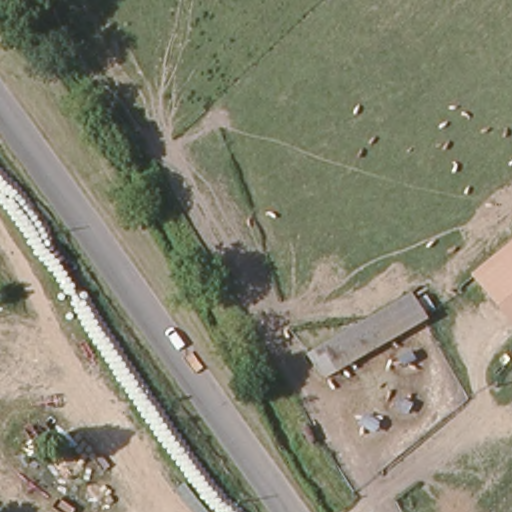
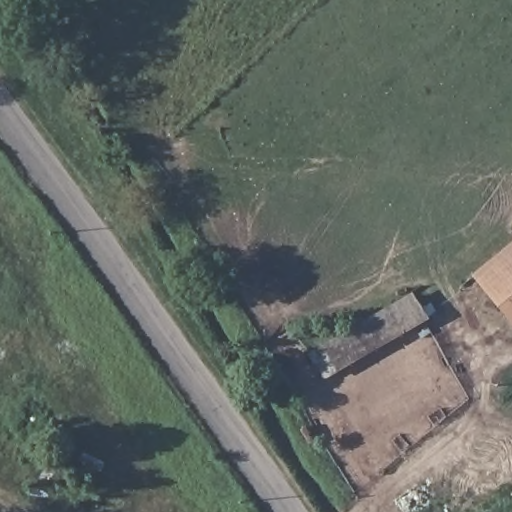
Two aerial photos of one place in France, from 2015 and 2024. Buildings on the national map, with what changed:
unchanged [(472,271),(512,239),(512,321),(472,271)]
unchanged [(424,321),(318,382),(305,358),(411,297),(424,321)]

